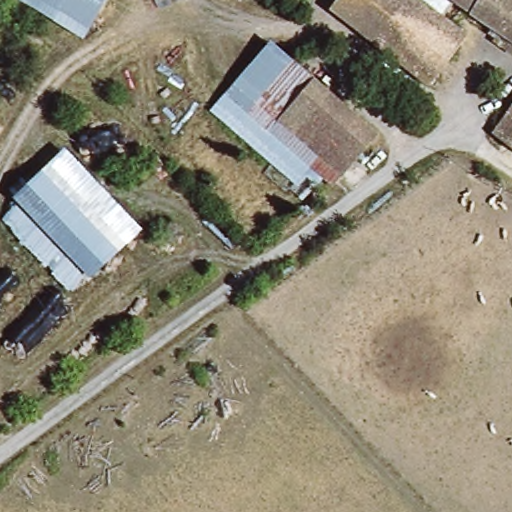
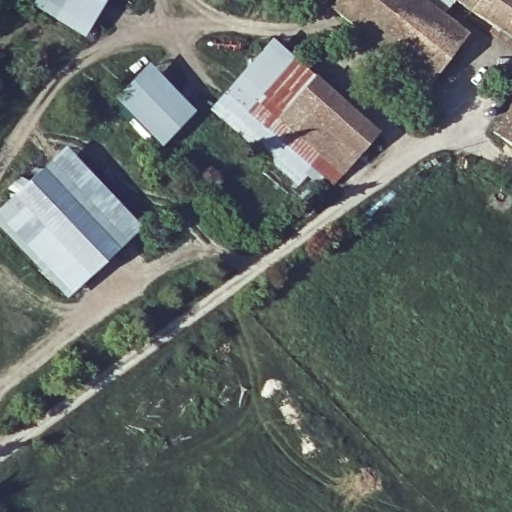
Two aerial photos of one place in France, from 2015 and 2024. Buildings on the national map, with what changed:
unchanged [(105,0),(86,36),(21,0),(105,0)]
unchanged [(421,0),(438,13),(465,34),(426,85),(395,62),(325,7),(331,0),(421,0)]
unchanged [(421,0),(447,0),(438,13),(421,0)]
unchanged [(465,0),(512,0),(512,35),(483,14),(465,0)]
unchanged [(335,188),(312,168),(292,189),(205,109),(272,35),(382,136),(335,188)]
new [(149,62),(196,112),(160,149),(112,99),(149,62)]
unchanged [(512,99),(512,148),(489,131),(512,99)]
unchanged [(142,228),(70,295),(0,219),(0,218),(16,202),(12,199),(64,148),(142,228)]

